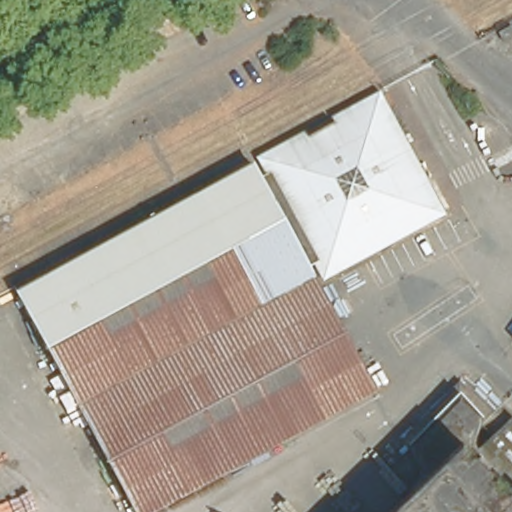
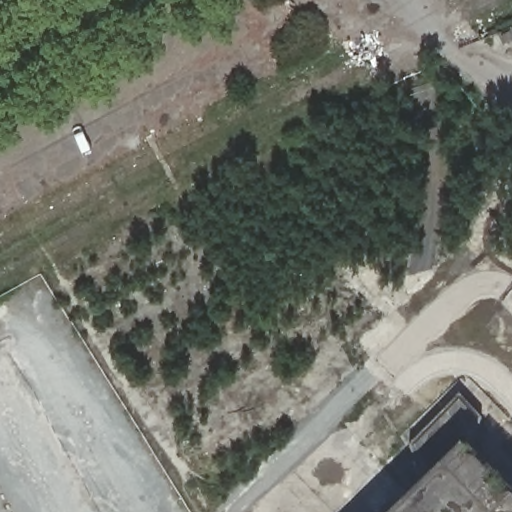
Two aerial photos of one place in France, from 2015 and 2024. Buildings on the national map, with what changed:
unchanged [(504,44),(498,32),(512,25),(512,26),(512,39),(504,44)]
demolished [(378,95),(441,213),(323,277),(314,260),(309,263),(303,251),(366,217),(379,209),(401,198),(378,155),(280,208),(256,160),(378,95)]
demolished [(116,229),(139,217),(141,222),(195,193),(248,165),(255,161),(256,160),(280,208),(378,155),(401,198),(379,209),(366,217),(303,251),(309,263),(322,284),(314,289),(369,392),(144,512),(130,512),(11,292),(119,234),(116,229)]
unchanged [(409,490),(420,475),(409,447),(459,395),(481,419),(476,447),(473,454),(489,471),(502,484),(512,494),(512,512),(389,512),(411,492),(409,490)]
unchanged [(512,423),(512,494),(502,484),(489,471),(473,454),(509,420),(512,423)]

